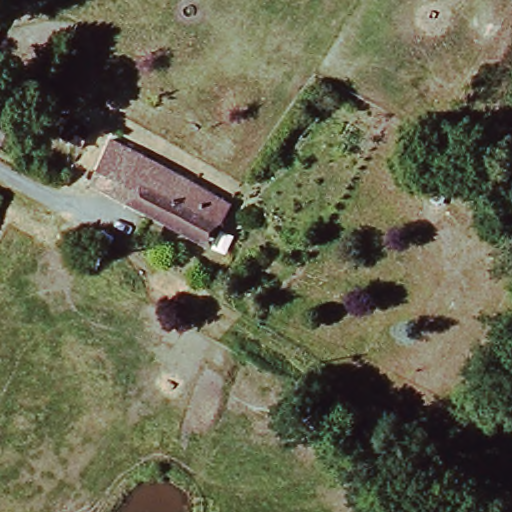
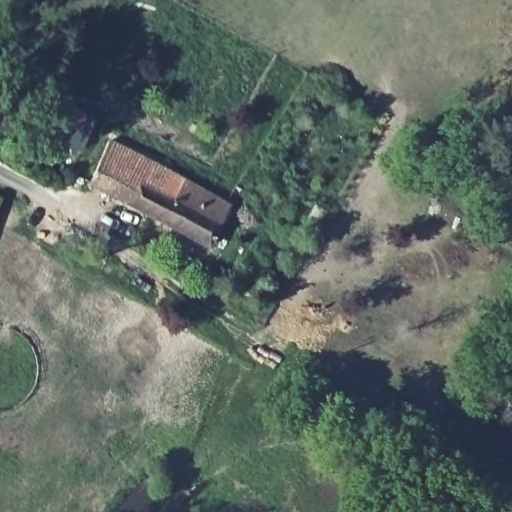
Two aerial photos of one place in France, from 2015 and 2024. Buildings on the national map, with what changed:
unchanged [(0,33),(0,27),(3,29),(0,33)]
unchanged [(63,130),(68,119),(71,112),(90,122),(87,128),(81,140),(63,130)]
unchanged [(212,245),(91,183),(111,141),(232,204),(212,245)]

